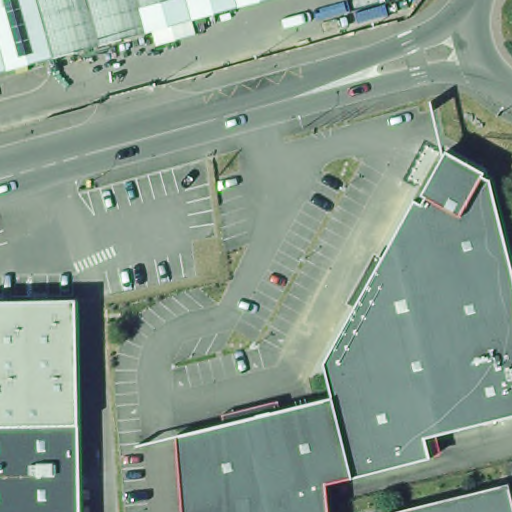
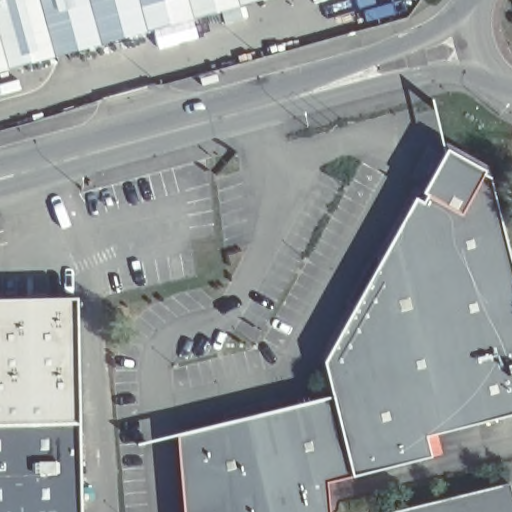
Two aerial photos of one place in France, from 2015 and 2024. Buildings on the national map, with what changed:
unchanged [(131,11),(136,35),(0,72),(0,0),(172,0),(131,11)]
unchanged [(278,396),(280,405),(332,393),(330,386),(323,359),(337,333),(354,304),(346,299),(374,249),(382,253),(415,195),(422,199),(426,192),(422,190),(446,146),(485,167),(483,171),(490,174),(512,262),(512,412),(425,433),(430,454),(350,474),(327,480),(313,483),(320,511),(329,508),(329,512),(183,512),(176,432),(175,432),(175,431),(223,419),(221,410),(240,405),(278,396)]
unchanged [(81,512),(0,512),(0,302),(75,300),(81,512)]
unchanged [(414,512),(512,489),(512,512),(414,512)]

